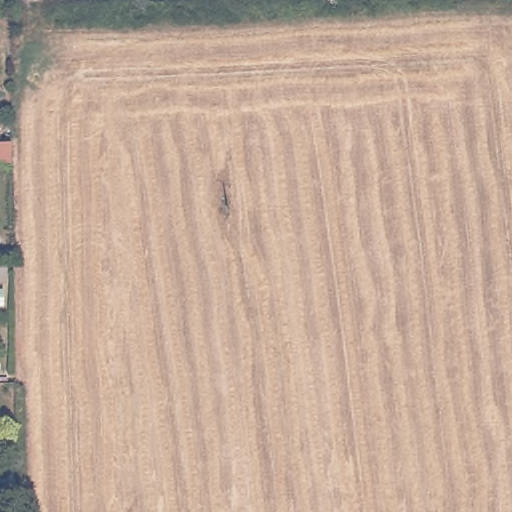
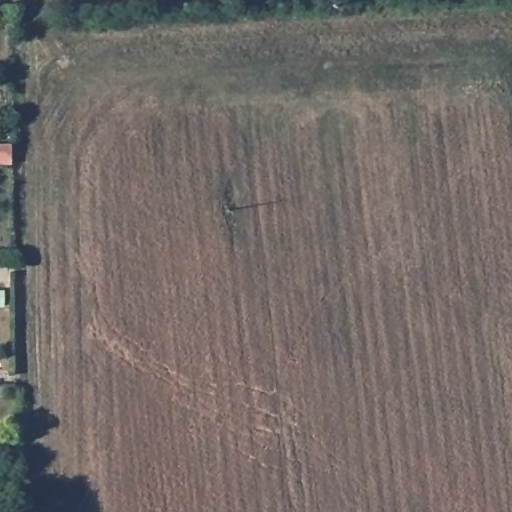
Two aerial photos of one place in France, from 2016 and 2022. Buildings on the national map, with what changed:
unchanged [(1,168),(0,169),(0,148),(1,147),(1,168)]

